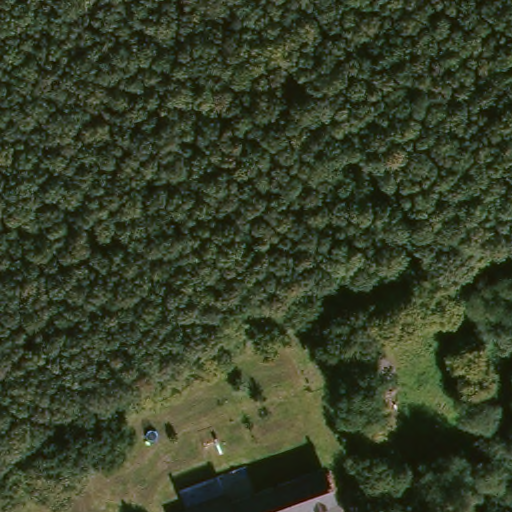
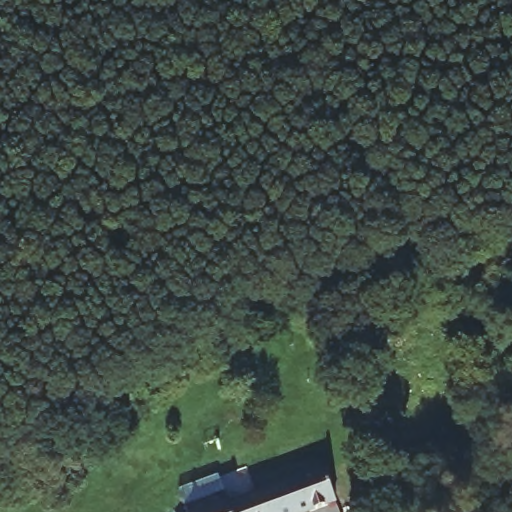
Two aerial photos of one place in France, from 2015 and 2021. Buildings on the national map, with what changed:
unchanged [(223,490),(227,501),(308,470),(329,462),(342,496),(303,512),(184,512),(182,505),(223,490)]

